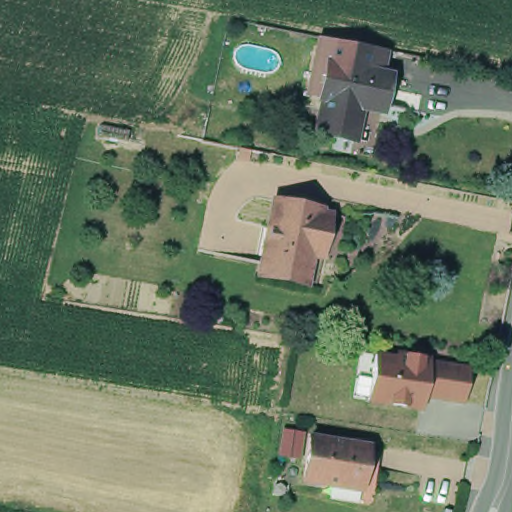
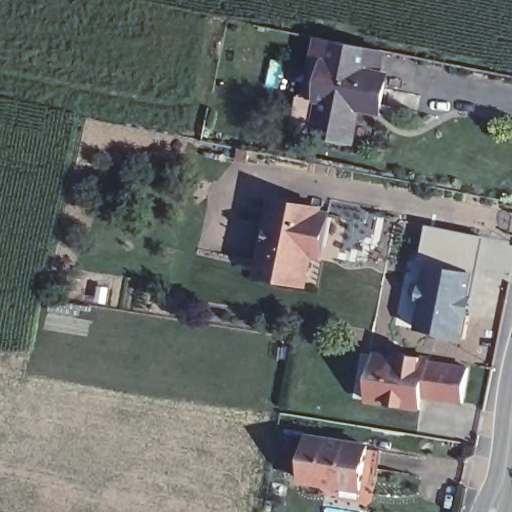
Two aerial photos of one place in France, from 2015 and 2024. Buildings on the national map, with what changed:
unchanged [(307,94),(320,37),(382,50),(377,72),(326,62),(319,97),(307,94)]
unchanged [(340,135),(315,130),(322,97),(319,97),(326,62),(377,72),(387,74),(380,110),(360,106),(355,138),(340,135)]
unchanged [(255,267),(257,256),(270,191),(320,201),(327,203),(319,247),(311,246),(308,265),(305,277),(255,267)]
new [(424,224),(482,236),(476,272),(418,254),(424,224)]
new [(414,269),(417,273),(418,254),(476,272),(462,340),(411,327),(395,324),(405,287),(414,269)]
unchanged [(425,398),(422,412),(368,403),(376,354),(470,368),(464,404),(425,398)]
unchanged [(293,473),(300,428),(356,437),(356,441),(350,483),(314,477),(293,473)]
unchanged [(356,441),(369,442),(361,495),(312,487),(314,477),(350,483),(356,441)]

